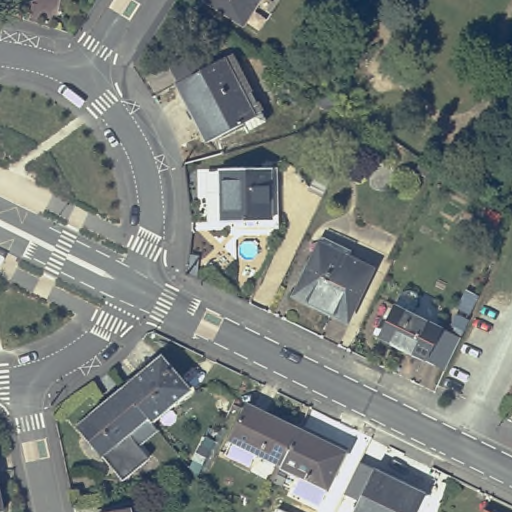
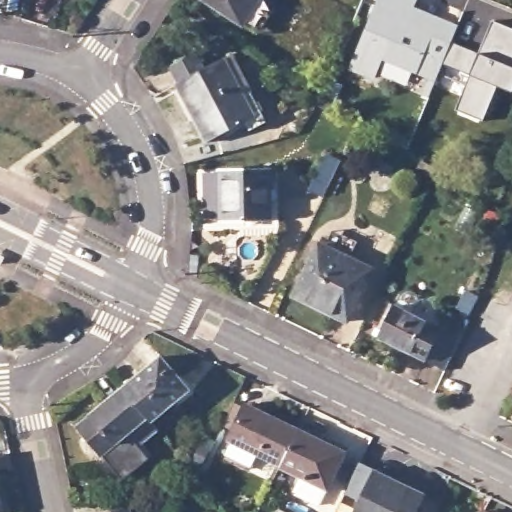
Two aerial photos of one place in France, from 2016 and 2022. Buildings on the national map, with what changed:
unchanged [(200,0),(259,0),(242,27),(200,0)]
new [(418,0),(410,22),(434,32),(440,17),(460,25),(438,78),(385,57),(377,77),(353,68),(379,0),(418,0)]
new [(479,52),(491,21),(512,30),(512,91),(493,85),(482,121),(452,111),(467,75),(443,66),(452,44),(479,52)]
unchanged [(207,143),(175,83),(178,82),(169,66),(196,52),(205,68),(224,57),(231,54),(263,114),(268,122),(249,132),(244,124),(207,143)]
unchanged [(314,179),(330,145),(344,151),(327,185),(314,179)]
unchanged [(423,159),(437,167),(430,182),(414,171),(423,159)]
unchanged [(273,221),(220,222),(219,169),(272,167),(273,221)]
unchanged [(347,322),(330,314),(332,312),(295,294),(319,244),(323,236),(352,251),(349,258),(372,269),(347,322)]
unchanged [(399,305),(400,306),(406,295),(410,291),(415,291),(420,293),(423,298),(423,303),(418,315),(445,328),(430,360),(384,337),(399,305)]
unchanged [(150,422),(121,389),(161,357),(189,390),(150,422)]
unchanged [(156,430),(138,446),(148,460),(121,481),(78,425),(121,389),(150,422),(156,430)]
unchanged [(258,448),(253,460),(229,449),(236,437),(234,436),(252,400),(276,412),(274,416),(302,430),(286,461),(258,448)]
unchanged [(333,486),(285,463),(286,461),(302,430),(304,425),(351,447),(333,486)]
unchanged [(0,509),(0,470),(8,507),(0,509)]
unchanged [(278,478),(282,470),(291,474),(287,482),(278,478)]
unchanged [(416,512),(355,512),(375,470),(425,494),(416,512)]
unchanged [(278,510),(283,512),(277,512),(278,510)]
unchanged [(488,511),(490,512),(487,512),(488,511)]

